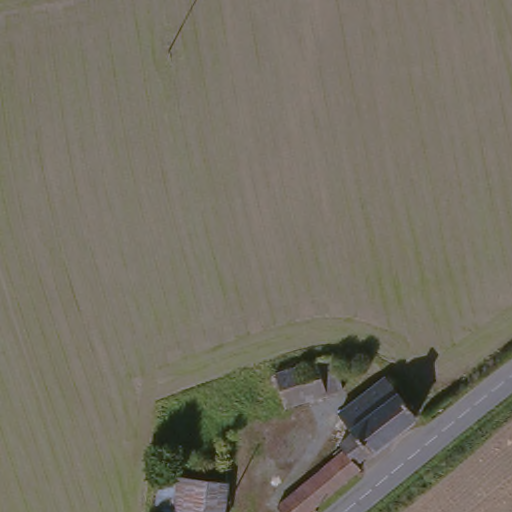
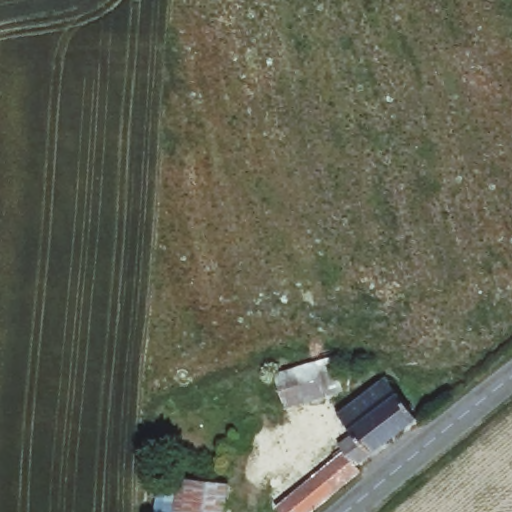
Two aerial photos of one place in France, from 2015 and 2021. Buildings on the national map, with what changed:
unchanged [(273,375),(328,358),(337,388),(282,405),(273,375)]
unchanged [(275,512),(274,511),(340,457),(333,449),(347,436),(334,418),(380,385),(409,421),(348,468),(355,475),(309,512),(275,512)]
unchanged [(225,485),(224,512),(157,512),(158,481),(225,485)]

